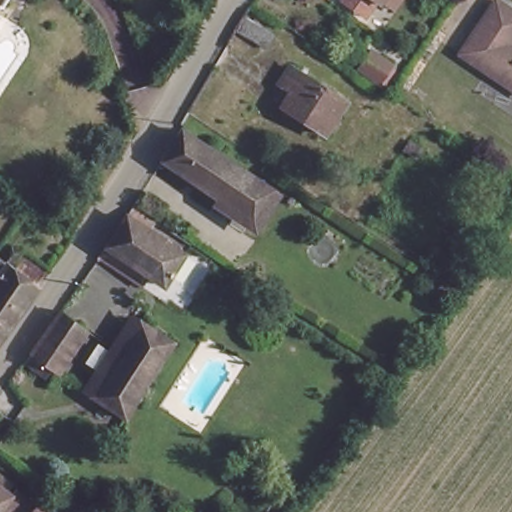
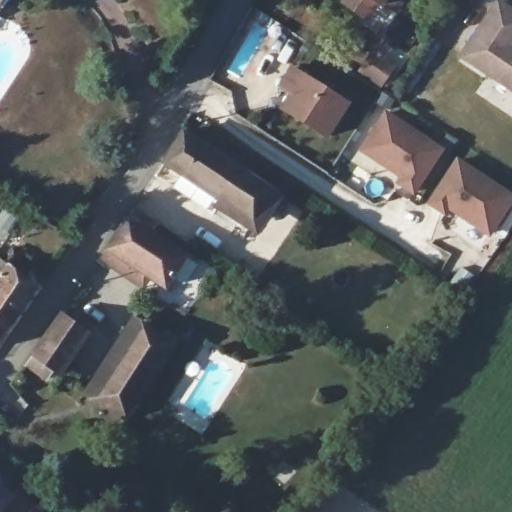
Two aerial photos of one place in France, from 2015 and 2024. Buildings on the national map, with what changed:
unchanged [(2,1),(0,3),(0,0),(2,0),(2,1)]
unchanged [(511,44),(512,44),(512,86),(460,54),(496,1),(512,10),(512,41),(511,44)]
unchanged [(396,61),(385,79),(364,65),(375,47),(396,61)]
unchanged [(355,103),(334,136),(291,108),(300,94),(287,85),(299,67),(355,103)]
new [(398,178),(358,151),(385,110),(445,150),(415,197),(395,185),(398,178)]
unchanged [(186,136),(277,197),(258,227),(168,167),(186,136)]
new [(427,204),(457,157),(512,193),(512,205),(489,238),(450,211),(446,216),(427,204)]
unchanged [(291,199),(294,201),(292,206),(289,204),(291,199)]
unchanged [(103,256),(111,244),(131,212),(189,251),(170,282),(153,271),(145,283),(103,256)]
unchanged [(12,266),(22,251),(54,272),(43,287),(0,346),(0,258),(12,266)]
unchanged [(30,358),(36,350),(65,308),(91,326),(63,368),(57,377),(30,358)]
unchanged [(173,345),(135,402),(124,419),(93,399),(141,325),(173,345)]
unchanged [(3,496),(8,488),(17,495),(15,497),(34,512),(0,512),(0,493),(3,496)]

